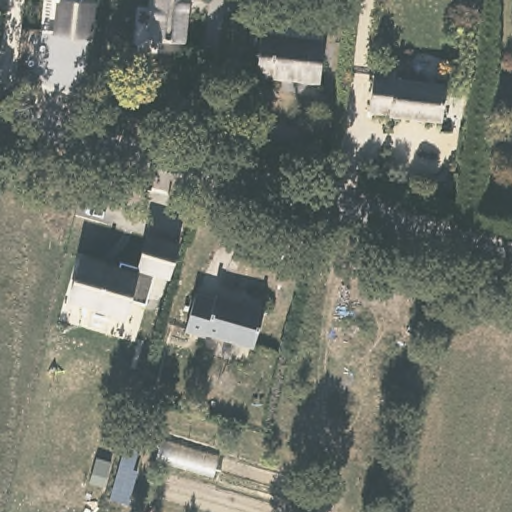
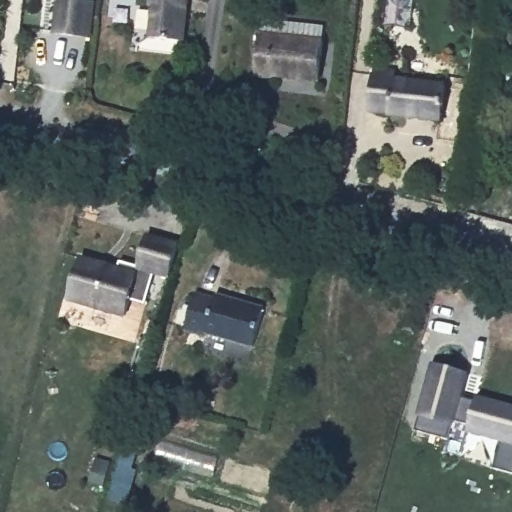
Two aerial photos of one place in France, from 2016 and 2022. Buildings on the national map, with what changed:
unchanged [(98,2),(94,42),(53,35),(52,0),(88,0),(87,2),(98,2)]
unchanged [(150,36),(154,4),(146,3),(147,0),(184,0),(178,39),(150,36)]
unchanged [(270,83),(270,86),(258,84),(261,42),(262,27),(289,29),(320,32),(327,32),(325,51),(321,87),(270,83)]
unchanged [(396,69),(396,76),(447,84),(443,119),(391,113),(391,110),(370,109),(375,74),(378,74),(379,67),(396,69)]
unchanged [(80,257),(119,268),(121,260),(137,265),(147,233),(180,244),(170,277),(152,273),(146,303),(131,298),(125,319),(67,302),(80,257)]
unchanged [(262,308),(252,346),(210,333),(209,339),(186,333),(196,296),(217,301),(218,296),(262,308)]
new [(466,371),(460,395),(476,400),(477,396),(512,406),(512,472),(494,467),(502,438),(468,429),(470,424),(453,419),(448,438),(415,429),(434,362),(466,371)]

